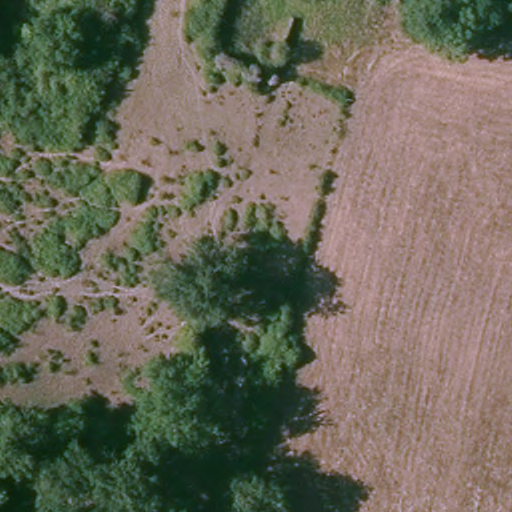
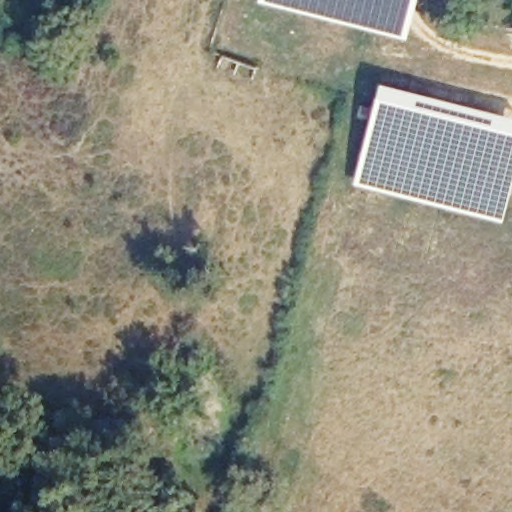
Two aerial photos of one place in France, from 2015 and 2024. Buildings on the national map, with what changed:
new [(257,0),(415,0),(404,42),(256,3),(257,0)]
new [(512,120),(512,184),(501,224),(351,186),(376,85),(512,120)]

